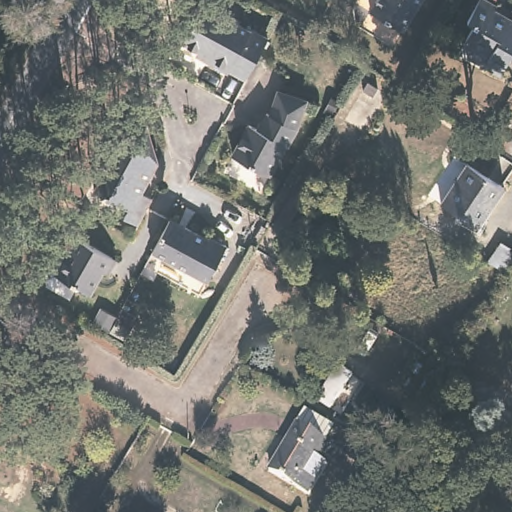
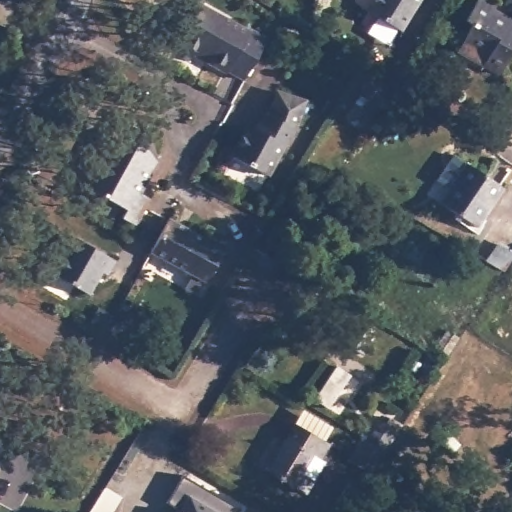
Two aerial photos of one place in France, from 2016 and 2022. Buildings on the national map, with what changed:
unchanged [(375,0),(421,0),(404,31),(369,10),(375,0)]
unchanged [(474,26),(467,21),(479,0),(485,0),(498,7),(495,12),(512,21),(512,55),(501,76),(485,66),(460,53),(464,45),(474,26)]
unchanged [(251,31),(254,28),(270,38),(247,80),(232,72),(231,74),(210,63),(213,58),(185,43),(205,6),(251,31)]
unchanged [(378,90),(374,96),(363,90),(367,83),(378,90)]
unchanged [(306,103),(295,132),(297,133),(288,148),(286,148),(272,173),(269,177),(233,157),(249,126),(259,131),(267,116),(269,116),(279,93),(306,103)]
unchanged [(156,158),(140,189),(153,196),(139,223),(125,215),(129,207),(94,187),(125,131),(136,137),(144,124),(156,158)]
unchanged [(505,189),(478,229),(440,204),(467,163),(505,189)]
unchanged [(208,240),(210,237),(226,247),(207,283),(152,253),(170,220),(208,240)]
unchanged [(116,261),(108,276),(103,274),(90,297),(56,279),(69,256),(64,253),(73,237),(116,261)]
unchanged [(512,252),(512,264),(507,274),(488,263),(500,245),(512,252)]
unchanged [(322,462),(326,465),(306,495),(269,472),(297,425),(299,426),(307,411),(335,428),(327,442),(333,446),(322,462)]
unchanged [(401,424),(397,431),(401,433),(391,448),(375,438),(384,423),(388,425),(392,419),(401,424)]
unchanged [(463,440),(454,452),(442,442),(451,430),(463,440)]
unchanged [(370,448),(368,453),(380,460),(373,472),(349,457),(358,441),(370,448)]
new [(179,510),(166,503),(184,475),(240,508),(238,512),(178,512),(179,510)]
unchanged [(362,492),(351,512),(345,512),(337,508),(348,485),(362,492)]

